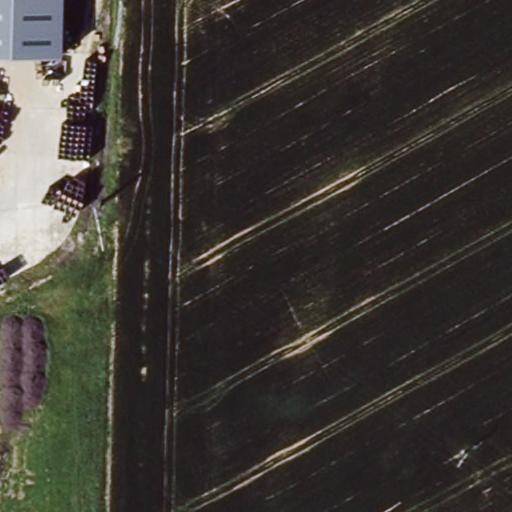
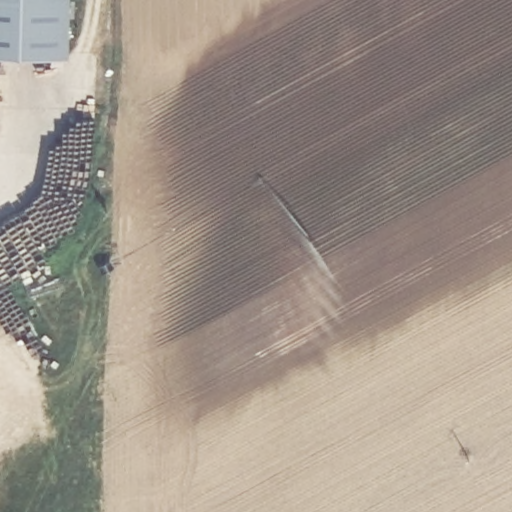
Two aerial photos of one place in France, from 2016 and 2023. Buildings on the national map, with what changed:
unchanged [(0,42),(0,0),(69,0),(69,48),(0,42)]

